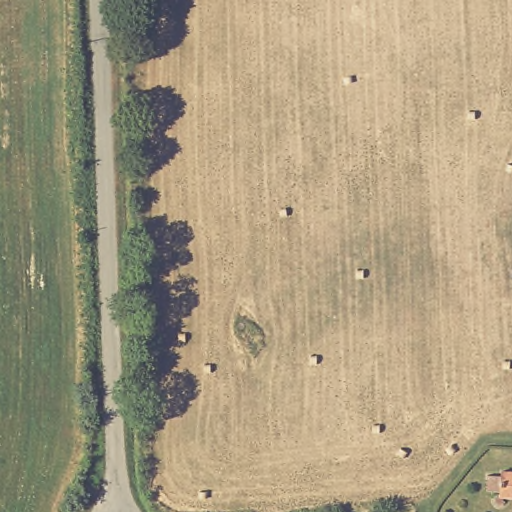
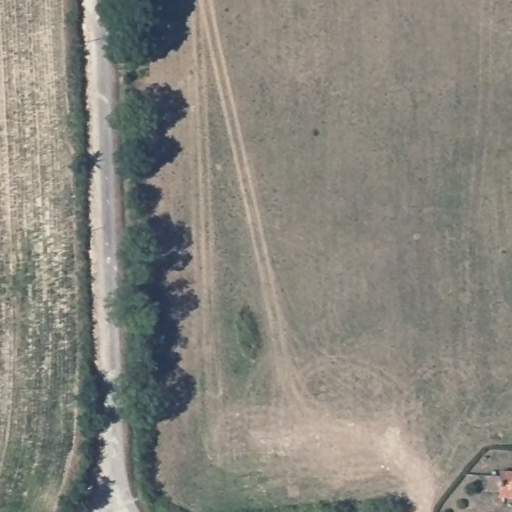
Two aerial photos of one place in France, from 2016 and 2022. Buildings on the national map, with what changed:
unchanged [(504,496),(504,491),(485,491),(486,476),(507,477),(508,471),(512,471),(512,496),(504,496)]

